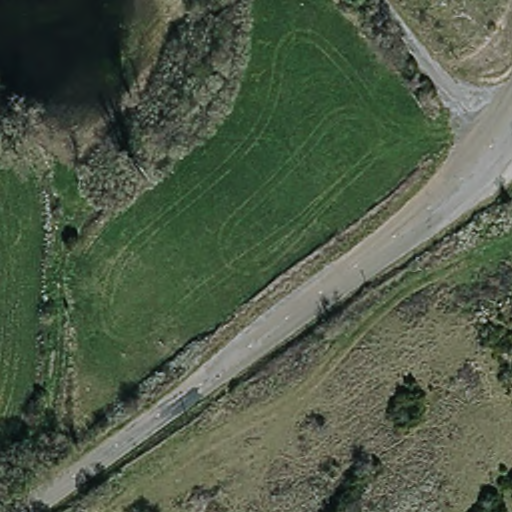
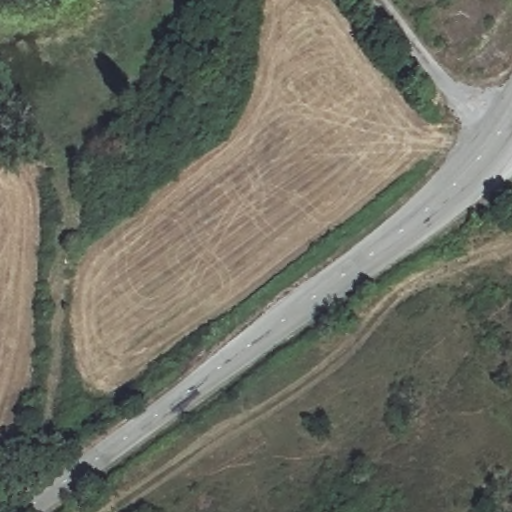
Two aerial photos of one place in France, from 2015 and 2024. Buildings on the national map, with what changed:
[]

